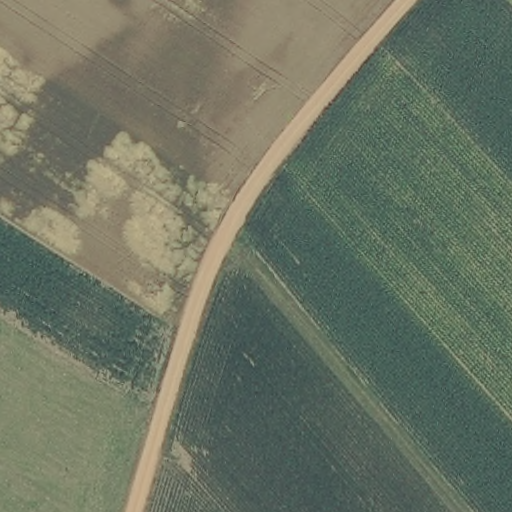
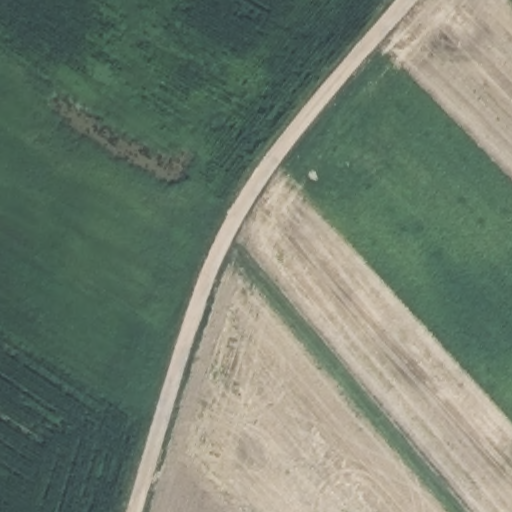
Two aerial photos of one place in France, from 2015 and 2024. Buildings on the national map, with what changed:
[]

